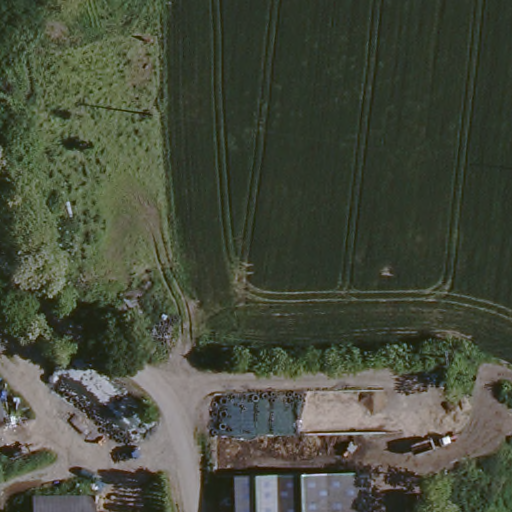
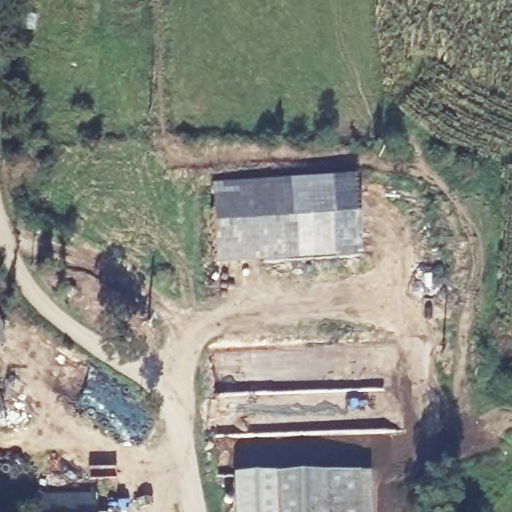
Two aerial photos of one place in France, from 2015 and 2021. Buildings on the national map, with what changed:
new [(359,258),(215,266),(212,186),(355,181),(359,258)]
unchanged [(8,342),(0,344),(0,309),(8,342)]
unchanged [(13,421),(0,424),(0,372),(13,421)]
unchanged [(373,470),(374,512),(273,512),(273,508),(272,471),(373,470)]
unchanged [(273,512),(232,512),(230,471),(272,471),(273,512)]
unchanged [(99,490),(99,512),(117,512),(37,512),(37,491),(99,490)]

